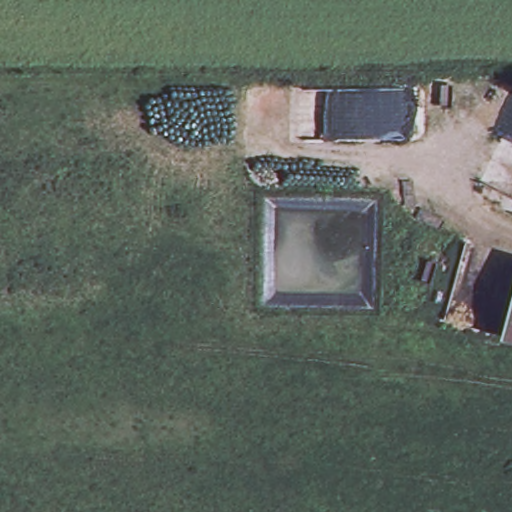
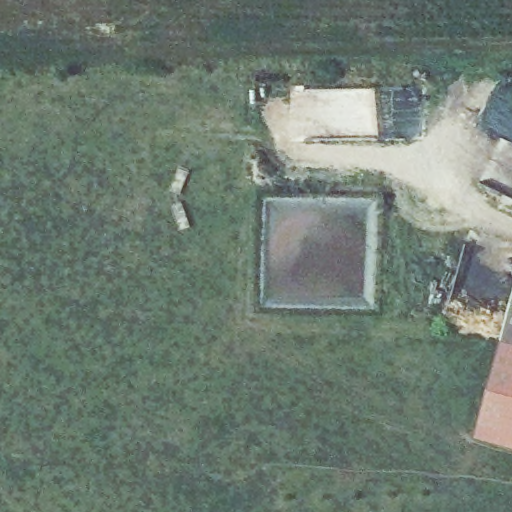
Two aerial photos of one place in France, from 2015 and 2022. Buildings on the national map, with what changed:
unchanged [(504,338),(507,327),(512,307),(512,340),(504,338)]
new [(512,340),(512,441),(478,432),(504,338),(512,340)]

